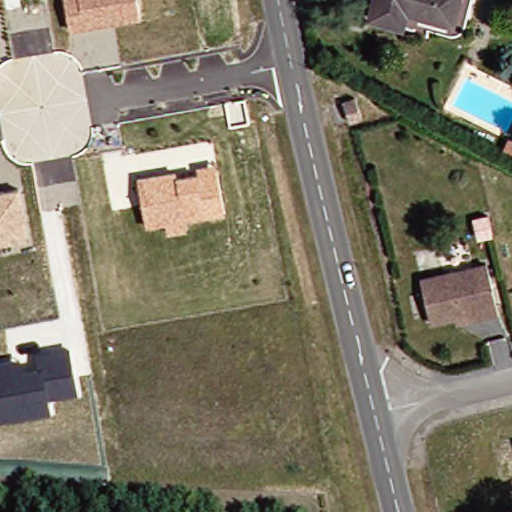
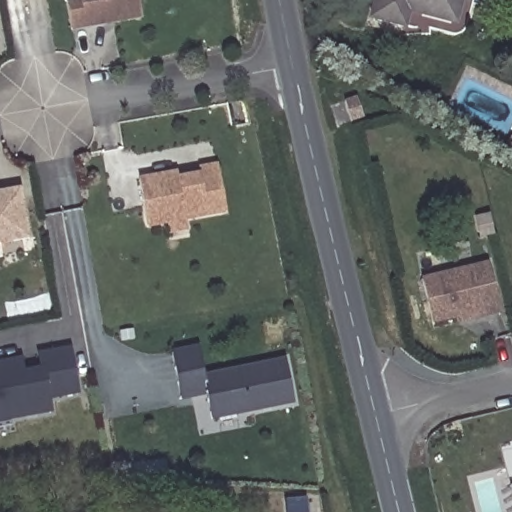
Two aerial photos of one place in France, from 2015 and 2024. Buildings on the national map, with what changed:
unchanged [(65,0),(141,0),(143,17),(70,27),(65,0)]
unchanged [(469,23),(464,32),(456,34),(433,28),(407,27),(375,18),(380,0),(475,0),(470,20),(469,23)]
unchanged [(342,101),(354,97),(361,117),(349,121),(342,101)]
unchanged [(512,142),(512,154),(503,151),(508,140),(512,142)]
unchanged [(177,172),(178,178),(198,174),(197,167),(216,164),(225,216),(185,222),(186,232),(167,237),(165,227),(145,230),(137,179),(177,172)]
unchanged [(27,233),(0,238),(0,190),(20,186),(27,233)]
unchanged [(459,312),(435,318),(424,275),(490,260),(502,309),(486,312),(460,318),(459,312)]
unchanged [(78,395),(48,400),(51,413),(0,421),(0,361),(21,358),(23,371),(38,367),(35,352),(69,347),(78,395)]
new [(294,407),(210,422),(206,397),(180,402),(172,352),(199,347),(203,374),(285,359),(294,407)]

